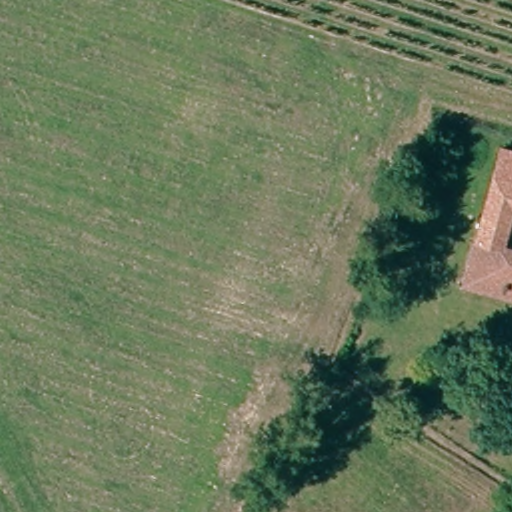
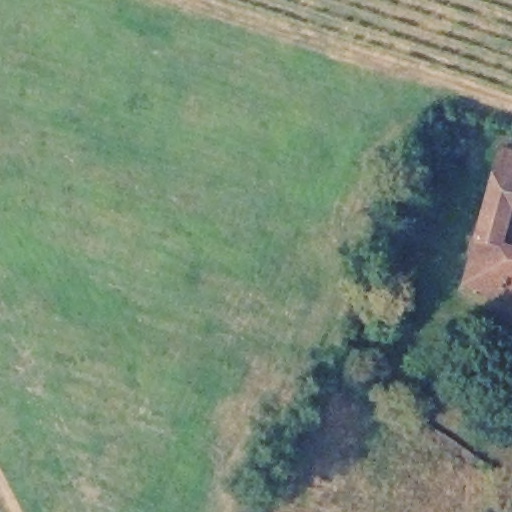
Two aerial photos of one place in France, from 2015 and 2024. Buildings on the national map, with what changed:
unchanged [(512,251),(512,302),(462,286),(498,170),(505,150),(512,151),(512,218),(504,249),(512,251)]
unchanged [(509,449),(497,443),(510,418),(512,420),(512,462),(504,459),(509,449)]

